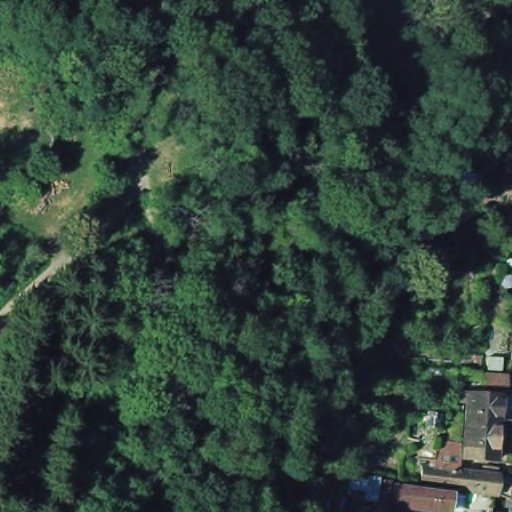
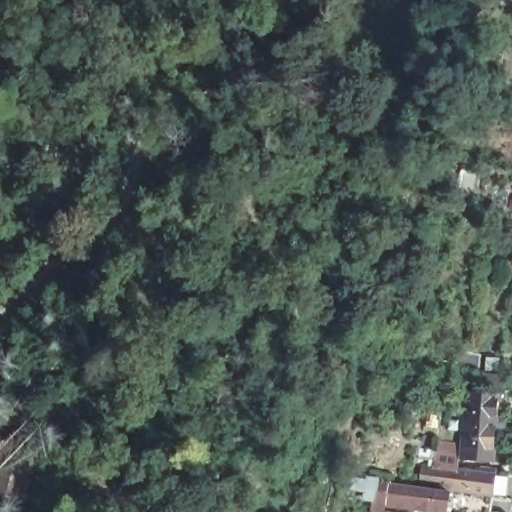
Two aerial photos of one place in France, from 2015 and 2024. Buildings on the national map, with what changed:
unchanged [(477,372),(503,374),(502,386),(476,383),(477,372)]
unchanged [(512,389),(512,410),(503,409),(506,388),(512,389)]
unchanged [(463,457),(467,412),(477,413),(478,397),(497,399),(495,415),(496,415),(496,420),(502,420),(501,427),(495,426),(493,460),(463,457)]
unchanged [(40,509),(16,503),(19,495),(2,491),(15,441),(10,439),(11,432),(32,438),(33,432),(52,437),(48,449),(45,463),(52,465),(40,509)]
unchanged [(495,474),(500,475),(497,493),(493,493),(492,493),(428,484),(419,482),(421,463),(431,465),(436,465),(437,458),(433,457),(420,456),(421,447),(434,449),(435,439),(459,442),(455,468),(495,474)]
unchanged [(445,511),(405,505),(406,496),(394,494),(396,482),(409,484),(448,491),(445,511)]
unchanged [(382,511),(387,512),(361,512),(363,506),(382,511)]

